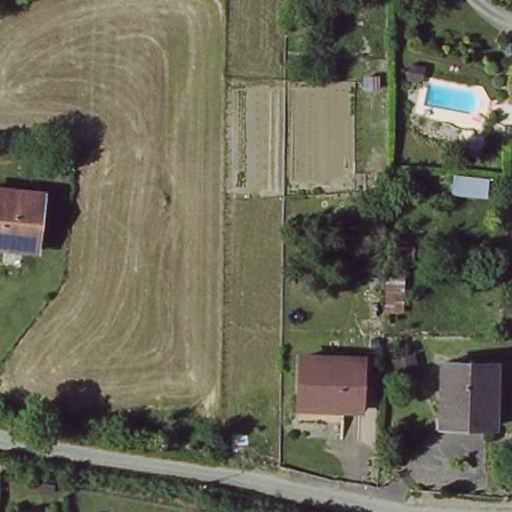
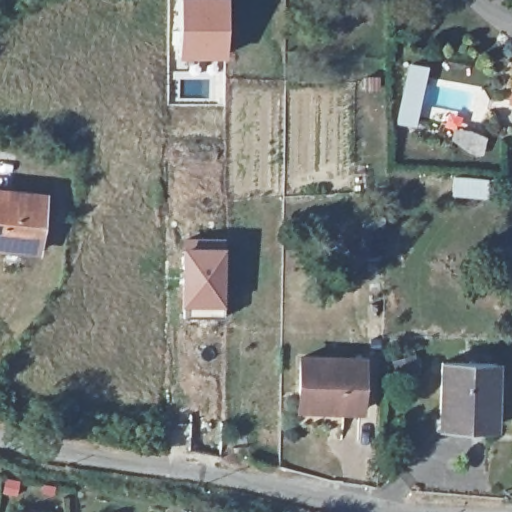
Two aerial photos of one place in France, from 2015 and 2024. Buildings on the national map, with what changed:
new [(177,56),(178,0),(226,0),(225,56),(177,56)]
unchanged [(512,94),(512,100),(511,100),(512,94)]
unchanged [(488,179),(486,197),(452,194),(454,177),(488,179)]
unchanged [(37,252),(0,248),(0,190),(43,194),(37,252)]
unchanged [(365,227),(381,228),(380,256),(364,256),(365,227)]
new [(223,242),(221,317),(181,316),(182,238),(223,242)]
unchanged [(300,400),(301,356),(363,358),(361,412),(329,411),(299,410),(300,400)]
unchanged [(441,416),(442,364),(496,366),(495,427),(463,427),(440,426),(441,416)]

